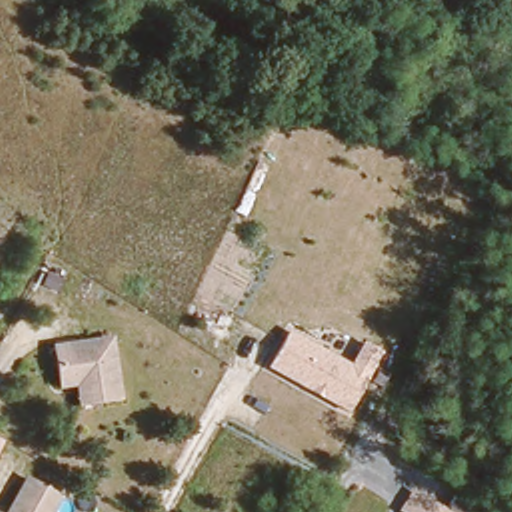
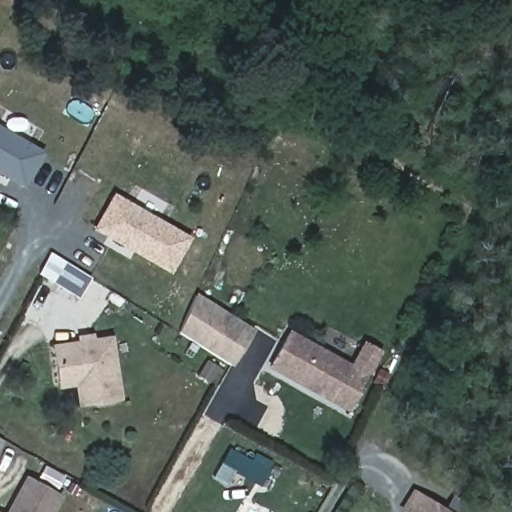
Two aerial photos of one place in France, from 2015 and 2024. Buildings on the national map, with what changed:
new [(25,189),(0,175),(0,127),(44,152),(25,189)]
new [(114,192),(192,237),(170,275),(91,230),(114,192)]
new [(77,299),(37,274),(49,254),(90,278),(77,299)]
new [(176,331),(199,295),(255,330),(232,367),(176,331)]
unchanged [(289,328),(351,363),(362,343),(384,352),(348,412),(269,368),(289,328)]
unchanged [(110,335),(119,400),(75,406),(73,385),(56,388),(50,345),(110,335)]
new [(263,488),(234,473),(228,485),(214,477),(229,448),(272,471),(263,488)]
unchanged [(61,495),(52,512),(3,512),(24,474),(61,495)]
unchanged [(414,490),(448,512),(402,512),(400,510),(414,490)]

